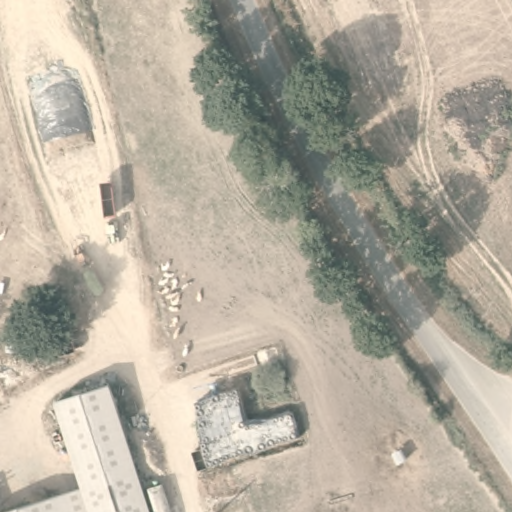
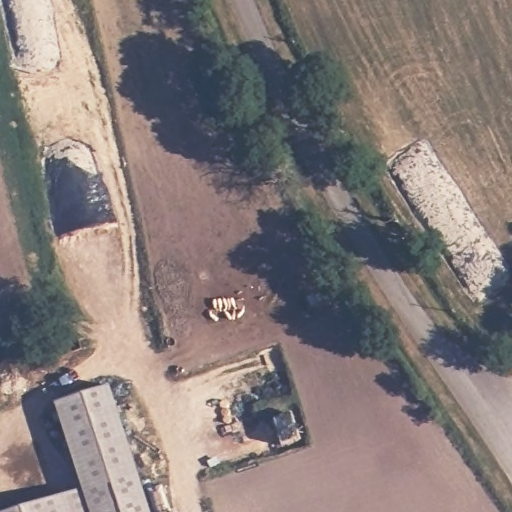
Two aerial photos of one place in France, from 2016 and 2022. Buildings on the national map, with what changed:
unchanged [(54,401),(118,385),(156,512),(14,512),(82,491),(54,401)]

